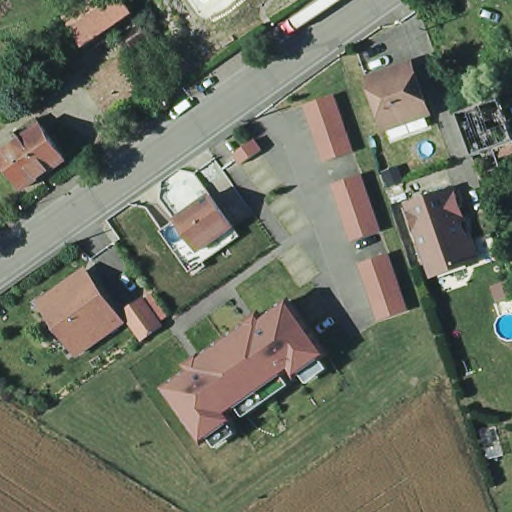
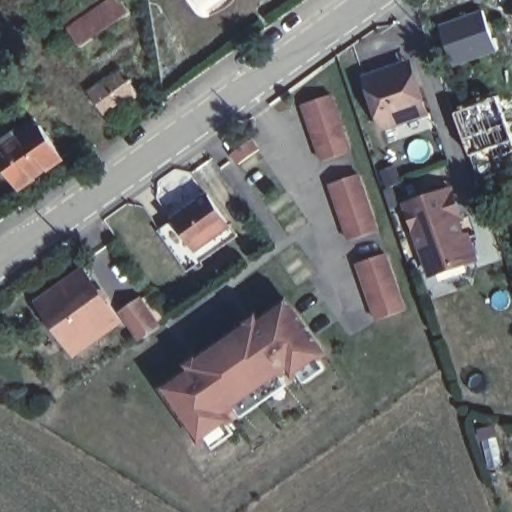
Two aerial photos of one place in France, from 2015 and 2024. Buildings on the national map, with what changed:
unchanged [(61,21),(91,0),(120,0),(131,16),(82,51),(61,21)]
new [(482,12),(496,52),(453,67),(439,27),(482,12)]
unchanged [(128,48),(118,35),(138,21),(147,35),(128,48)]
unchanged [(107,116),(89,91),(101,83),(94,74),(133,47),(139,57),(156,81),(107,116)]
unchanged [(412,67),(420,92),(429,118),(427,119),(385,133),(367,82),(404,70),(412,67)]
unchanged [(305,103),(333,93),(353,151),(325,160),(305,103)]
unchanged [(468,156),(452,111),(495,95),(511,140),(512,144),(512,150),(494,156),(497,166),(475,175),(468,156)]
unchanged [(18,186),(0,159),(0,137),(14,127),(33,115),(39,122),(62,156),(18,186)]
unchanged [(234,152),(255,138),(262,148),(241,162),(234,152)]
unchanged [(333,182),(361,173),(381,230),(352,240),(333,182)]
unchanged [(452,188),(463,218),(458,220),(464,236),(468,234),(477,258),(432,273),(408,204),(452,188)]
unchanged [(190,270),(161,229),(176,217),(211,193),(234,225),(199,250),(205,259),(190,270)]
unchanged [(360,262),(388,252),(408,309),(379,319),(360,262)]
unchanged [(42,302),(87,270),(123,320),(78,352),(42,302)]
unchanged [(127,308),(143,297),(163,326),(147,337),(127,308)]
unchanged [(166,392),(192,373),(189,368),(201,360),(204,365),(252,331),(249,327),(260,318),(264,323),(290,305),(327,358),(297,380),(292,372),(230,417),(235,424),(204,446),(166,392)]

